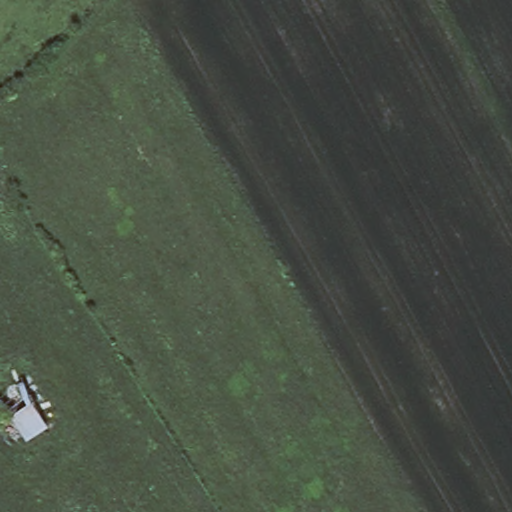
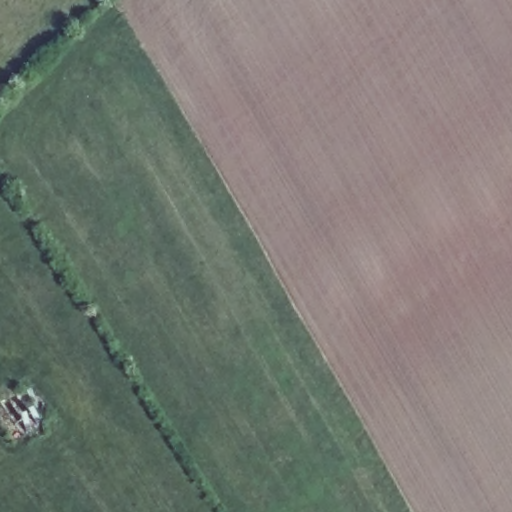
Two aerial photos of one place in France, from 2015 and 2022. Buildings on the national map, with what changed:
unchanged [(55,435),(35,451),(0,403),(0,396),(20,383),(55,435)]

